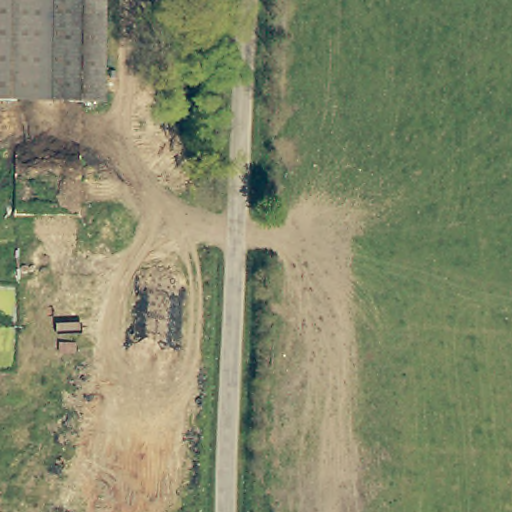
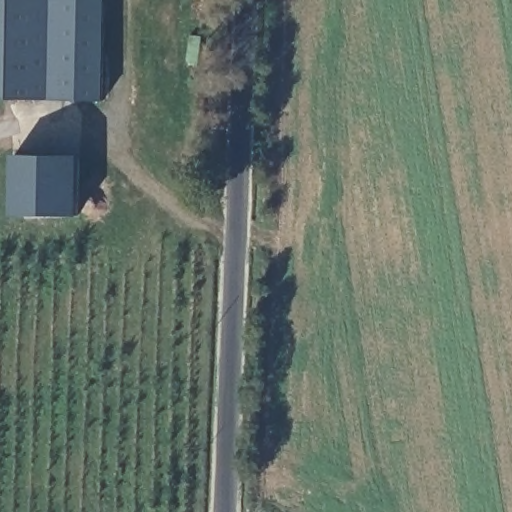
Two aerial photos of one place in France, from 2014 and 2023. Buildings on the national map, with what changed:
unchanged [(0,95),(0,0),(31,0),(33,94),(0,95)]
unchanged [(33,94),(31,0),(64,0),(65,94),(33,94)]
unchanged [(65,94),(64,0),(104,0),(105,93),(65,94)]
new [(82,216),(10,214),(12,156),(81,156),(82,216)]

